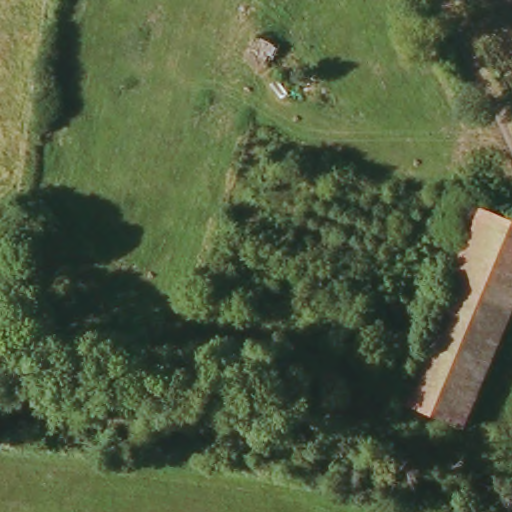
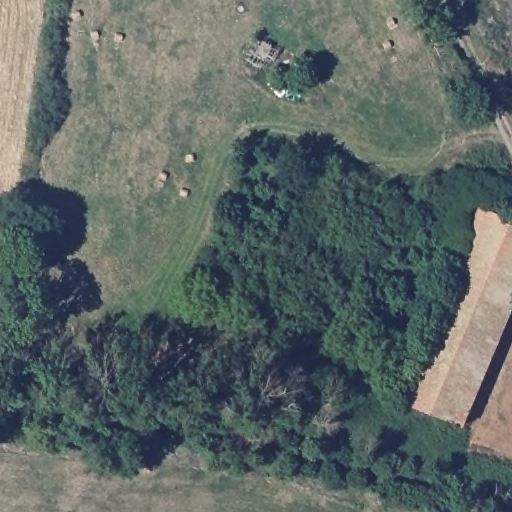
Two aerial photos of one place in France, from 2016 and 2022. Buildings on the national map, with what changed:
unchanged [(457,426),(400,402),(477,215),(512,233),(512,293),(457,426)]

